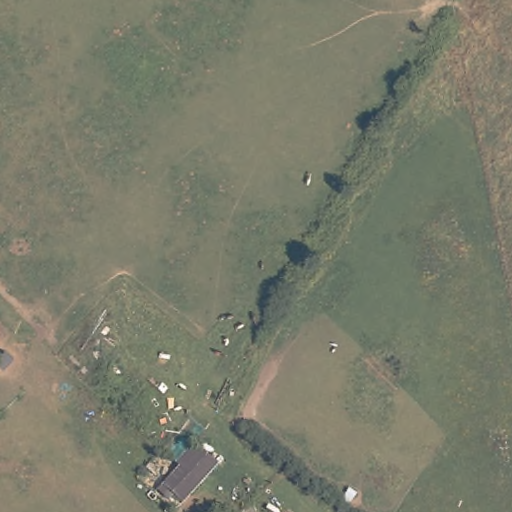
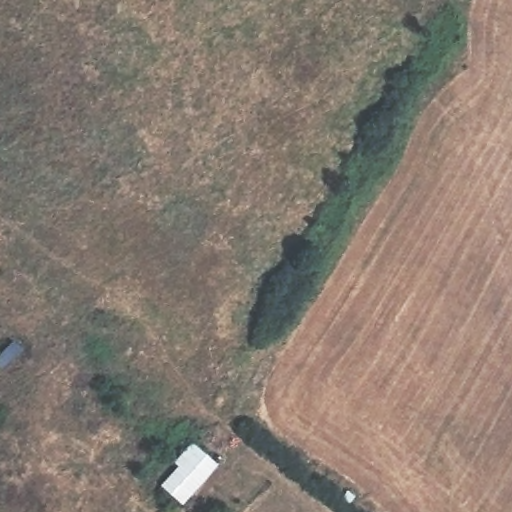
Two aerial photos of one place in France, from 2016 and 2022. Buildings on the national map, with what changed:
unchanged [(195,447),(218,465),(184,503),(163,483),(195,447)]

